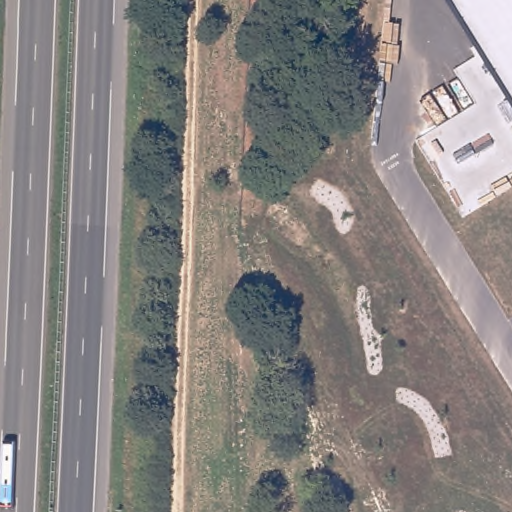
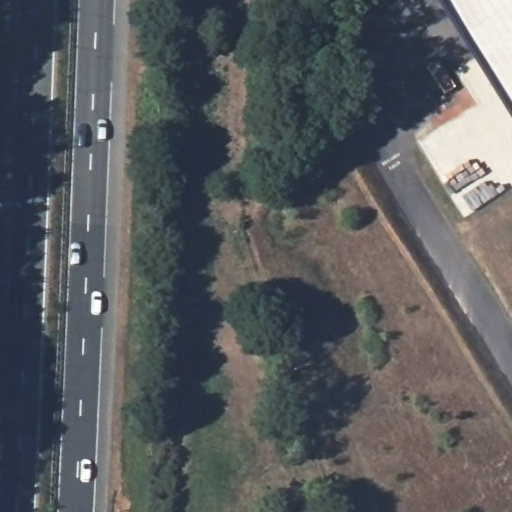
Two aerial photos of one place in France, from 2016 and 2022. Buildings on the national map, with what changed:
unchanged [(512,99),(451,0),(512,0),(512,99)]

